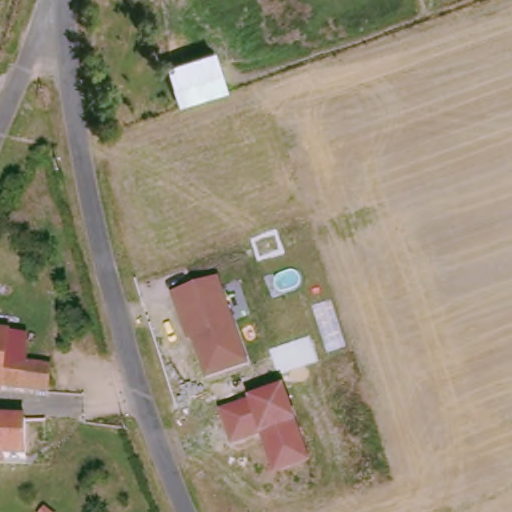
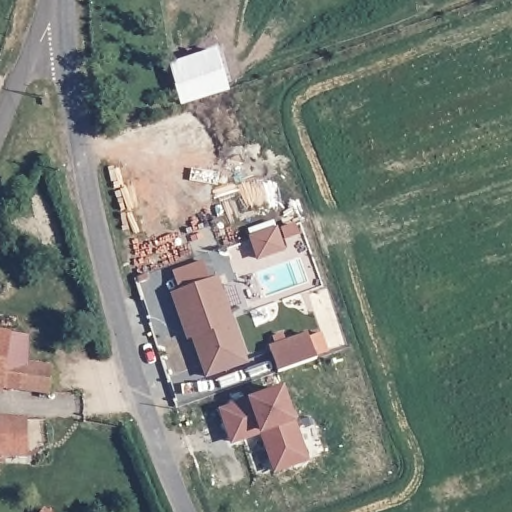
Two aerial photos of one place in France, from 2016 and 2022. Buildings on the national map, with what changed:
unchanged [(173,82),(223,66),(229,88),(180,103),(173,82)]
new [(296,223),(299,232),(285,237),(282,228),(296,223)]
new [(258,260),(249,236),(279,225),(286,250),(258,260)]
unchanged [(190,335),(185,337),(170,291),(218,273),(248,361),(205,377),(190,335)]
new [(273,337),(283,333),(285,341),(308,333),(309,337),(320,332),(326,348),(314,352),(316,357),(278,371),(269,347),(275,345),(273,337)]
unchanged [(34,341),(31,365),(56,370),(52,395),(0,386),(0,336),(34,341)]
unchanged [(223,408),(283,386),(306,456),(274,468),(260,430),(234,440),(223,408)]
unchanged [(29,461),(0,459),(0,416),(30,416),(29,461)]

